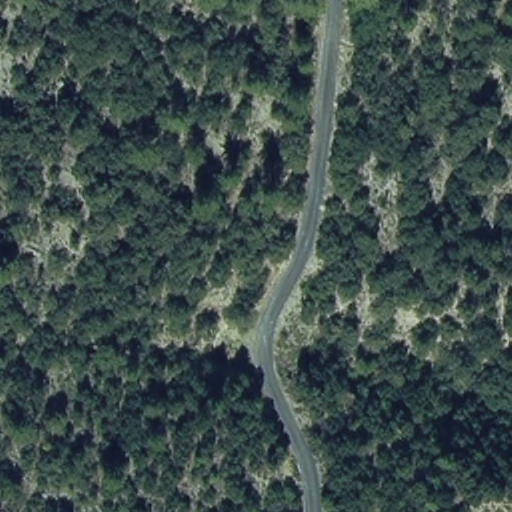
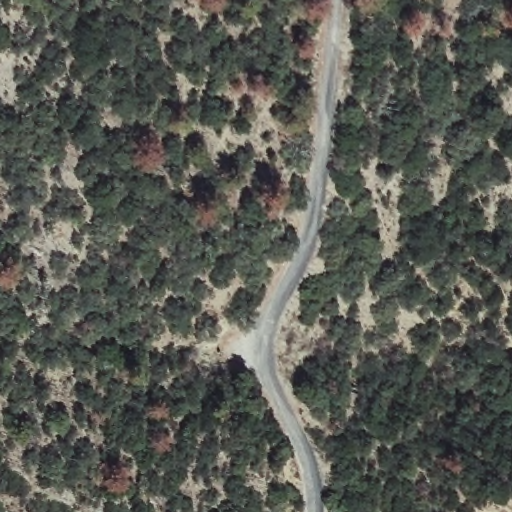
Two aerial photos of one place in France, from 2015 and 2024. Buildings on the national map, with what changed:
[]

